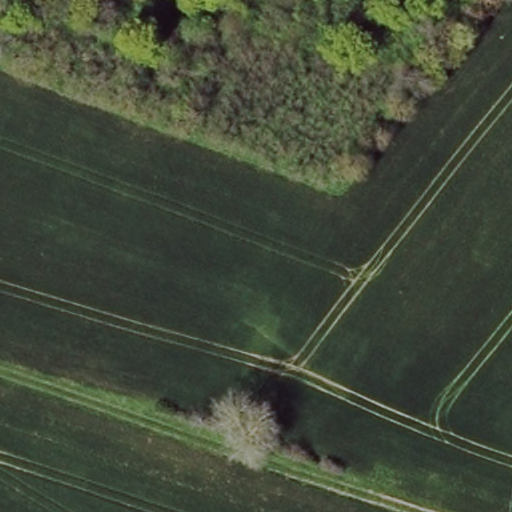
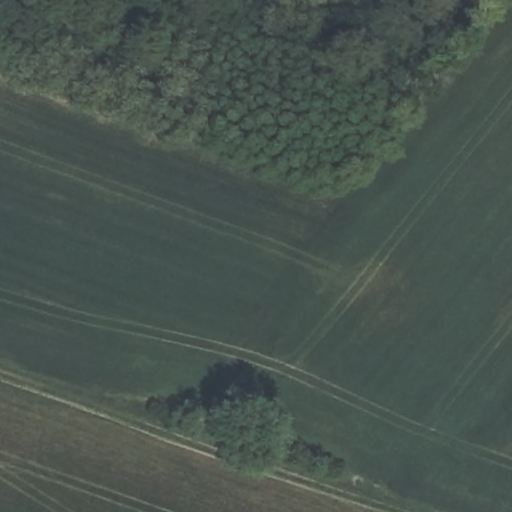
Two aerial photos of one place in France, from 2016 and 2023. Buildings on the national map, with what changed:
[]

